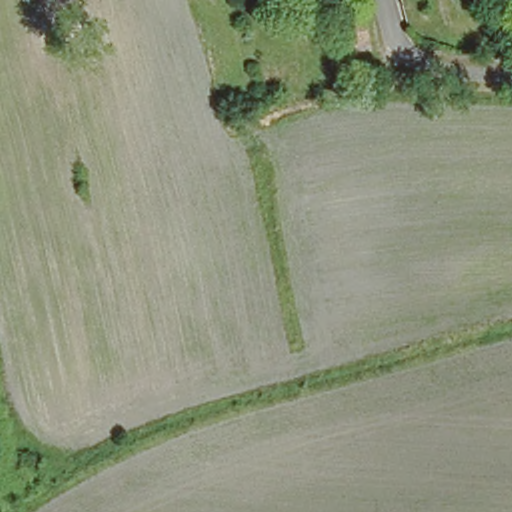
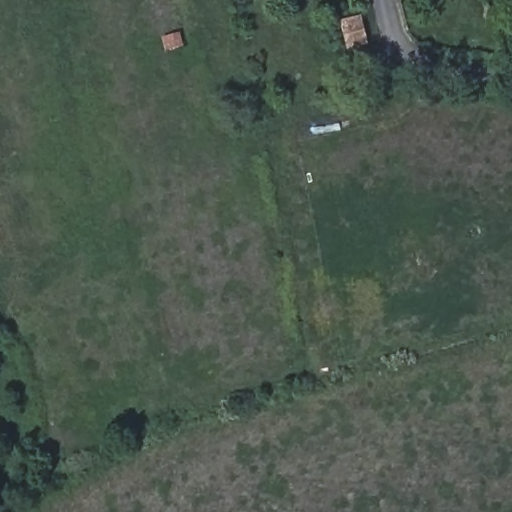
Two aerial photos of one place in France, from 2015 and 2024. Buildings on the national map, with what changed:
unchanged [(346,51),(340,23),(365,18),(370,48),(346,51)]

